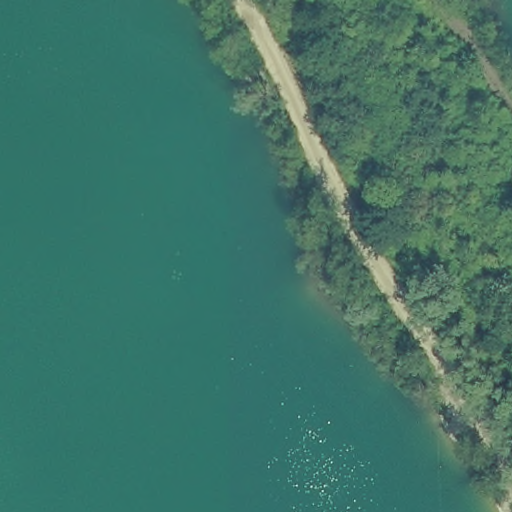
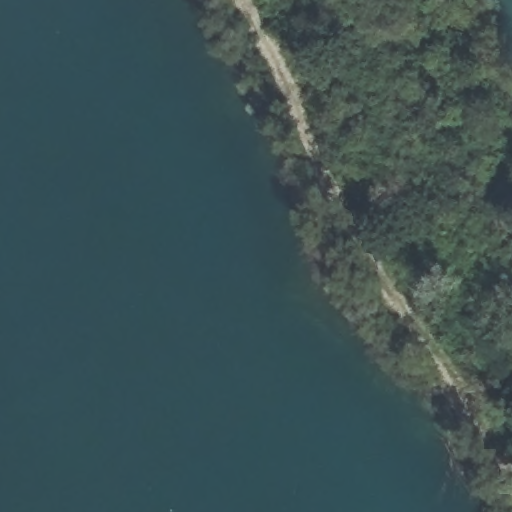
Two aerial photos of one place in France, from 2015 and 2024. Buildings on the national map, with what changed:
[]

